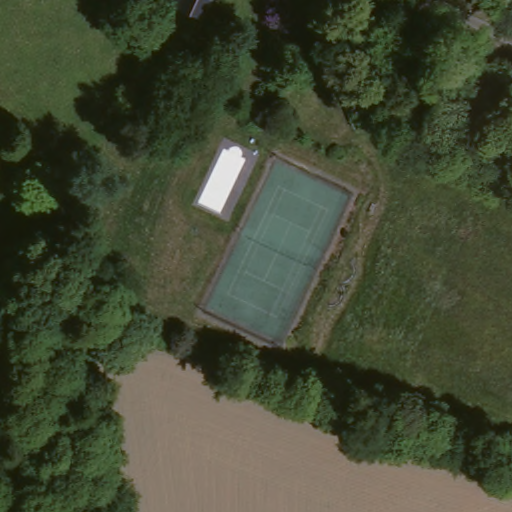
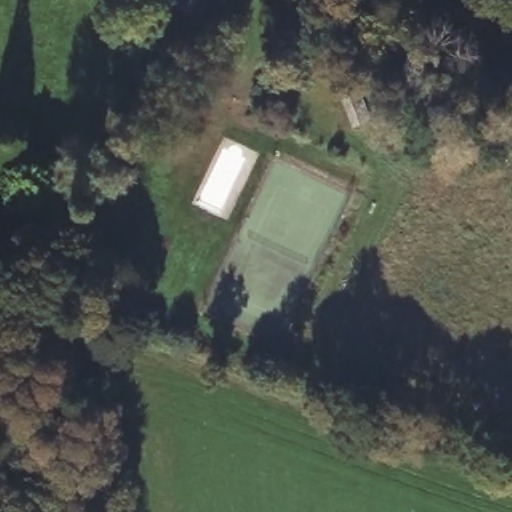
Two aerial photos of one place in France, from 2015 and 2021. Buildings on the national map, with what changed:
unchanged [(210,0),(200,22),(169,8),(173,0),(210,0)]
unchanged [(384,117),(365,123),(349,78),(366,75),(384,117)]

